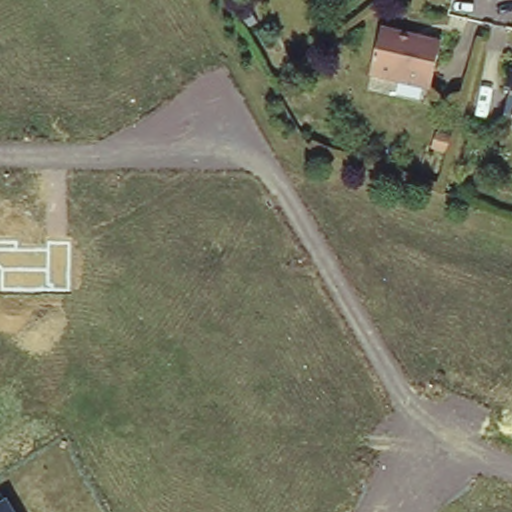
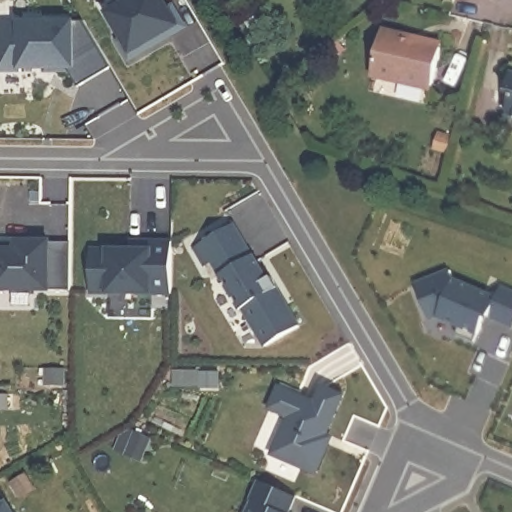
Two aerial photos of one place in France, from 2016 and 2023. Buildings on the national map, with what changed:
new [(123,0),(176,0),(193,28),(137,60),(110,8),(123,0)]
new [(78,24),(107,70),(74,89),(65,73),(0,73),(0,25),(78,24)]
unchanged [(442,42),(432,86),(378,74),(390,29),(442,42)]
unchanged [(512,120),(502,116),(508,94),(505,92),(510,73),(512,73),(512,120)]
new [(252,260),(267,283),(272,280),(278,291),(274,293),(284,310),(287,308),(301,328),(268,350),(244,313),(242,314),(200,249),(232,229),(251,260),(252,260)]
new [(14,242),(45,242),(67,242),(67,290),(0,290),(0,241),(14,242)]
new [(86,252),(124,251),(125,248),(147,248),(146,244),(166,244),(166,295),(85,293),(86,252)]
new [(473,344),(455,336),(459,328),(435,318),(428,321),(415,286),(449,273),(453,282),(496,301),(500,289),(512,294),(512,329),(481,316),(485,317),(481,326),(473,344)]
new [(222,365),(221,387),(172,386),(174,364),(222,365)]
new [(318,405),(325,388),(345,397),(325,445),(331,447),(319,474),(276,456),(292,418),(273,411),(281,390),(318,405)]
new [(133,425),(150,432),(138,457),(121,449),(133,425)]
new [(300,498),(293,512),(252,512),(256,502),(254,502),(263,482),(300,498)]
unchanged [(9,499),(15,512),(0,512),(0,504),(9,499)]

